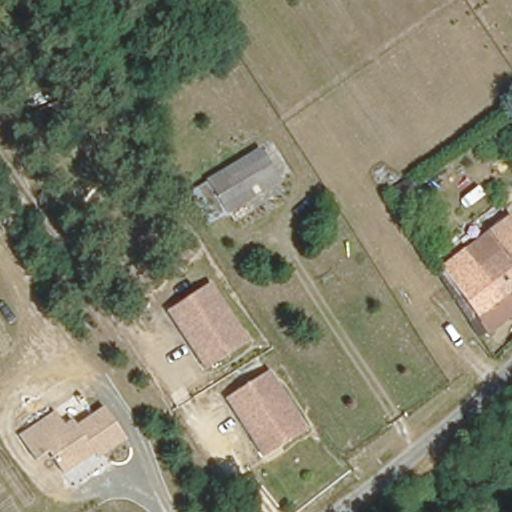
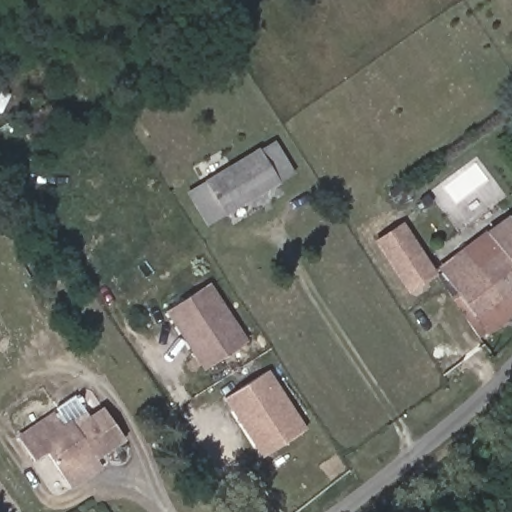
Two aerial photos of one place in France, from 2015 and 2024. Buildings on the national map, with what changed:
unchanged [(194,194),(240,160),(259,148),(279,182),(259,189),(212,224),(194,194)]
unchanged [(505,209),(512,219),(512,316),(482,339),(472,324),(477,318),(444,273),(490,238),(483,225),(505,209)]
new [(407,294),(373,240),(405,221),(438,274),(407,294)]
unchanged [(165,313),(207,285),(246,345),(203,373),(193,356),(176,331),(165,313)]
unchanged [(225,397),(267,369),(305,429),(263,456),(252,439),(235,413),(225,397)]
unchanged [(97,463),(92,457),(64,477),(51,456),(36,465),(16,437),(53,411),(63,425),(71,419),(78,426),(102,408),(127,441),(97,463)]

